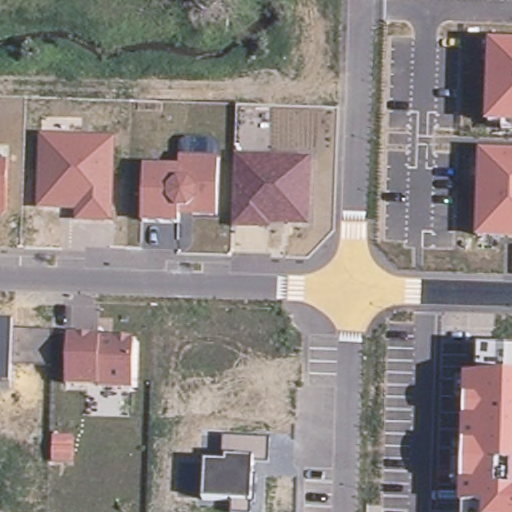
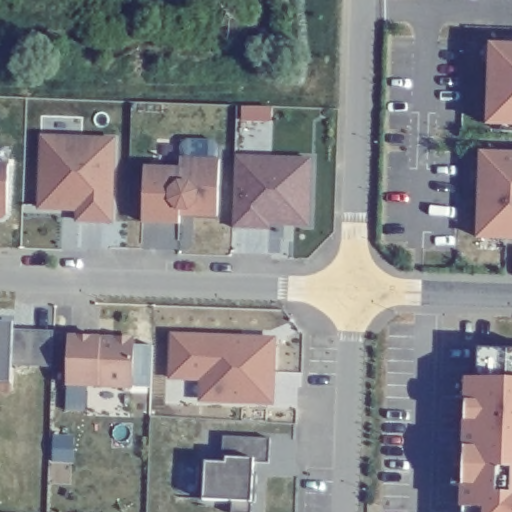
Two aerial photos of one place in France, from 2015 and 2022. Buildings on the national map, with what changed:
unchanged [(512,44),(512,128),(486,127),(489,44),(512,44)]
unchanged [(41,134),(117,137),(114,223),(76,221),(75,211),(38,210),(41,134)]
unchanged [(10,148),(7,218),(0,217),(0,147),(10,148)]
unchanged [(512,152),(512,240),(477,240),(479,151),(512,152)]
unchanged [(236,156),(313,158),(311,226),(271,225),(271,230),(234,228),(236,156)]
unchanged [(179,171),(181,159),(222,159),(218,217),(182,218),(181,229),(142,228),(145,169),(179,171)]
unchanged [(13,323),(13,330),(53,332),(51,367),(13,365),(12,383),(0,382),(0,322),(13,323)]
unchanged [(138,389),(63,388),(66,337),(140,339),(138,389)]
new [(161,345),(243,347),(243,344),(259,344),(264,350),(263,378),(258,378),(257,409),(211,407),(211,400),(190,399),(191,385),(160,384),(161,345)]
unchanged [(460,510),(465,379),(479,379),(480,350),(512,350),(512,512),(464,512),(464,510),(460,510)]
unchanged [(223,462),(224,437),(271,439),(270,463),(255,463),(254,474),(258,474),(257,503),(252,507),(252,512),(233,512),(234,501),(205,500),(207,462),(223,462)]

